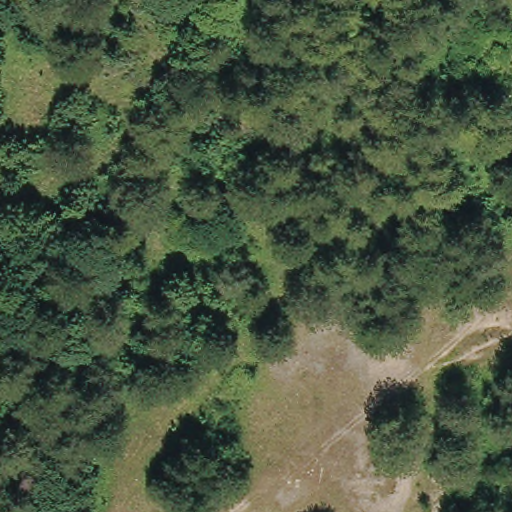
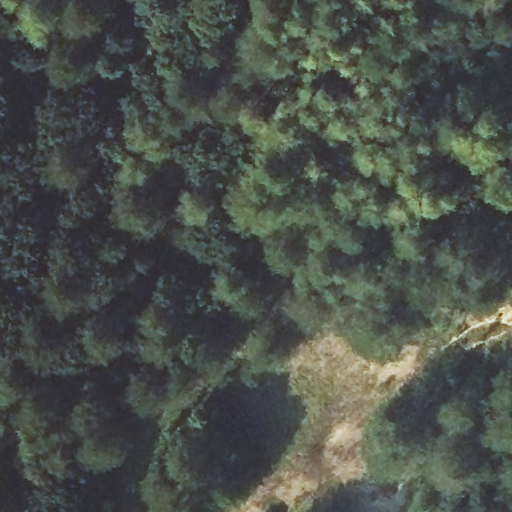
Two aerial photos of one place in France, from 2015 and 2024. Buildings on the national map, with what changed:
unchanged [(512,114),(512,205),(466,159),(512,114)]

